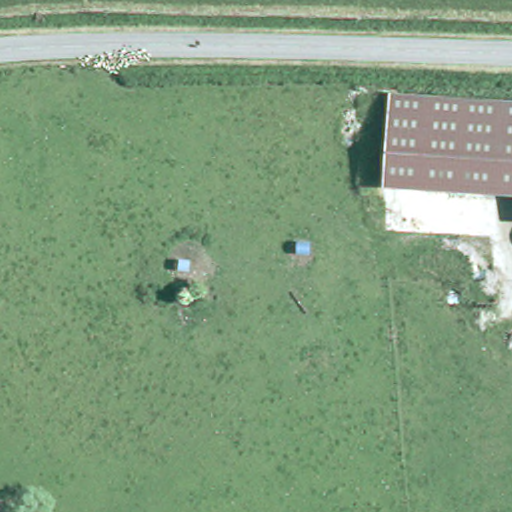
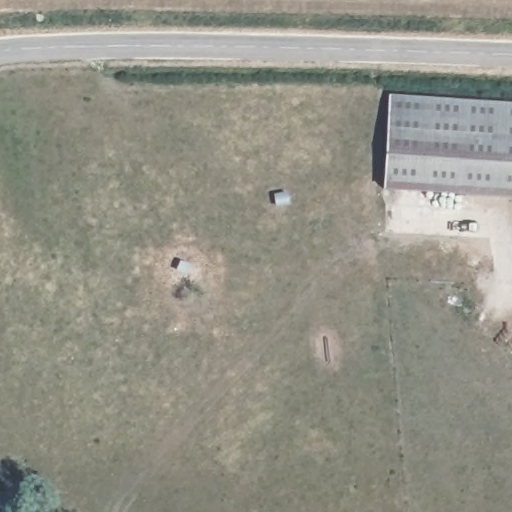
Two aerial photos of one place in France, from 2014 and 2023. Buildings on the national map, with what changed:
unchanged [(391,93),(512,101),(512,198),(384,186),(391,93)]

